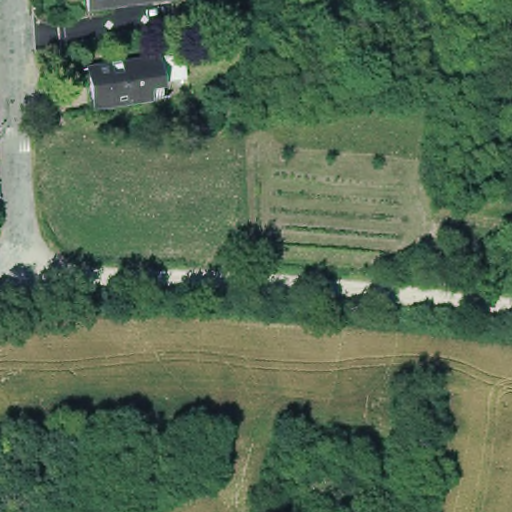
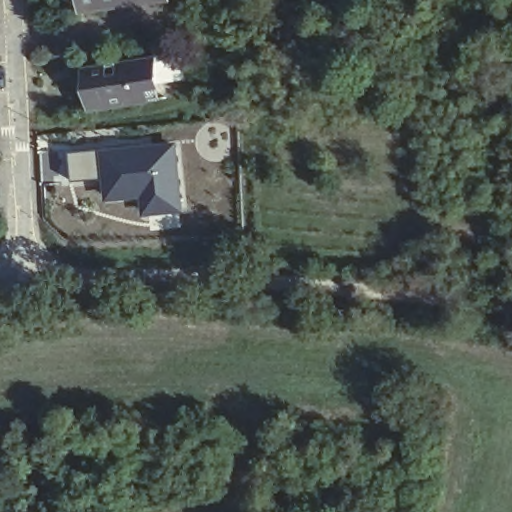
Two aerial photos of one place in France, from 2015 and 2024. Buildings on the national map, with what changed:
unchanged [(89,0),(175,0),(175,1),(90,14),(89,0)]
unchanged [(159,93),(148,95),(150,110),(92,119),(88,89),(120,84),(119,74),(156,69),(159,93)]
new [(182,211),(148,213),(147,196),(110,199),(109,182),(73,183),(72,152),(107,150),(107,153),(176,146),(182,211)]

